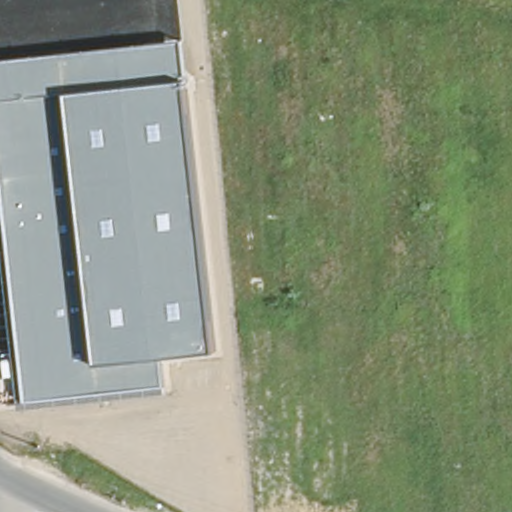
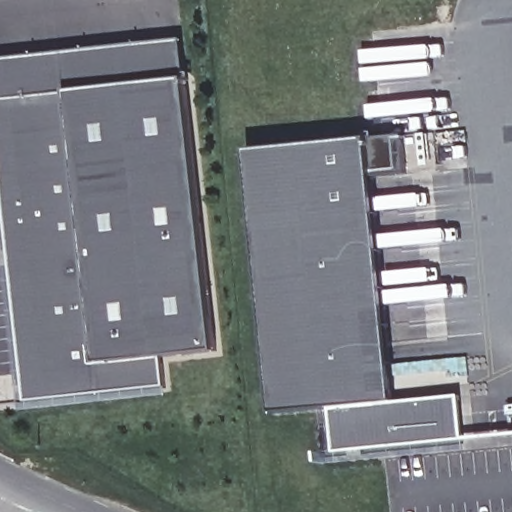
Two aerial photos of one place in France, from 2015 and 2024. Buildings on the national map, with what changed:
unchanged [(214,353),(164,360),(166,386),(25,402),(0,166),(0,60),(181,40),(214,353)]
new [(459,396),(463,440),(333,454),(328,410),(273,415),(247,151),(369,140),(405,136),(407,174),(374,177),(394,401),(459,396)]

